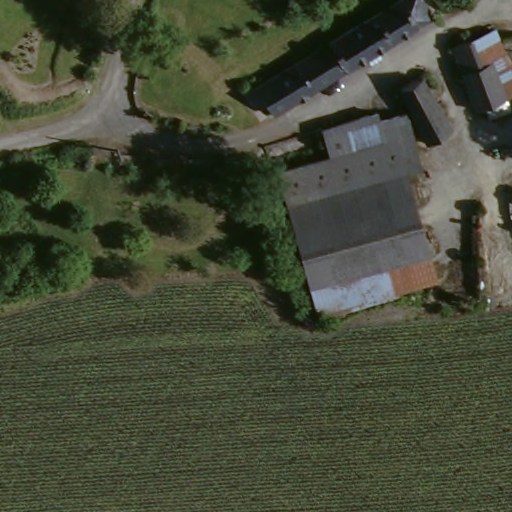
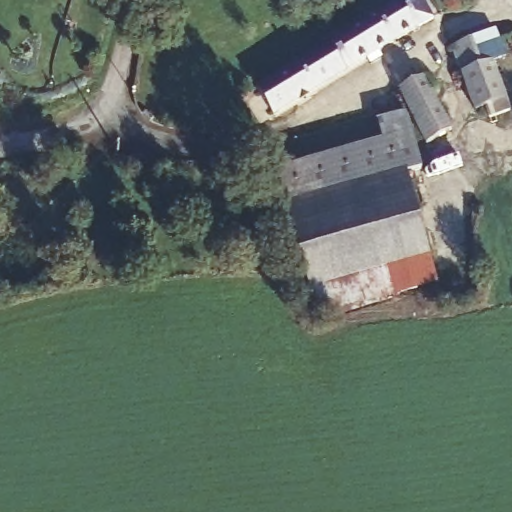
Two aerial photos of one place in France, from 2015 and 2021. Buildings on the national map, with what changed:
unchanged [(423,8),(430,22),(268,115),(253,87),(278,72),(385,7),(398,0),(418,0),(423,8)]
unchanged [(469,39),(475,37),(488,61),(495,57),(511,48),(512,51),(512,93),(494,102),(486,106),(450,42),(465,34),(466,36),(469,39)]
unchanged [(416,79),(450,127),(432,139),(398,90),(416,79)]
unchanged [(273,173),(318,159),(308,142),(328,130),(405,111),(423,167),(406,172),(284,208),(273,173)]
unchanged [(266,148),(328,130),(308,142),(318,159),(273,173),(266,148)]
unchanged [(426,240),(437,278),(315,313),(302,271),(284,208),(406,172),(426,240)]

